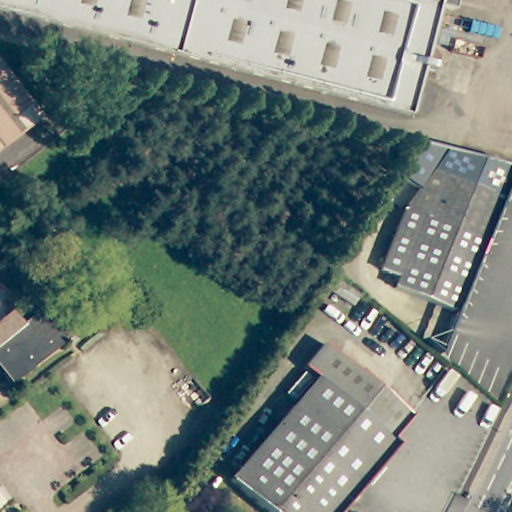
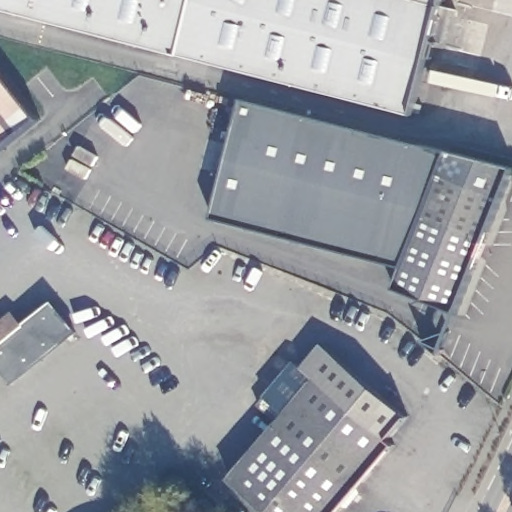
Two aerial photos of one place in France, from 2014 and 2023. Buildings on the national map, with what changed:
unchanged [(462,10),(445,6),(418,115),(0,8),(0,0),(464,0),(462,10)]
unchanged [(45,115),(0,150),(0,57),(45,115)]
new [(395,288),(404,266),(215,217),(246,100),(449,151),(511,168),(455,311),(395,288)]
demolished [(461,312),(400,288),(405,277),(387,270),(411,209),(437,170),(507,197),(461,312)]
unchanged [(18,306),(30,321),(57,298),(81,327),(16,378),(0,359),(0,320),(18,306)]
unchanged [(304,366),(323,343),(411,417),(391,440),(397,445),(393,450),(339,512),(267,512),(231,481),(315,383),(319,378),(304,366)]

